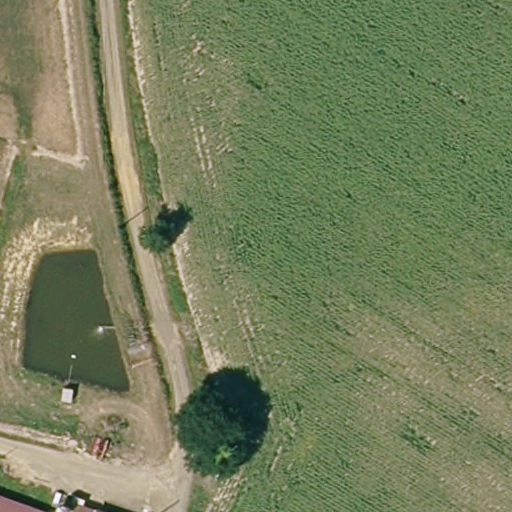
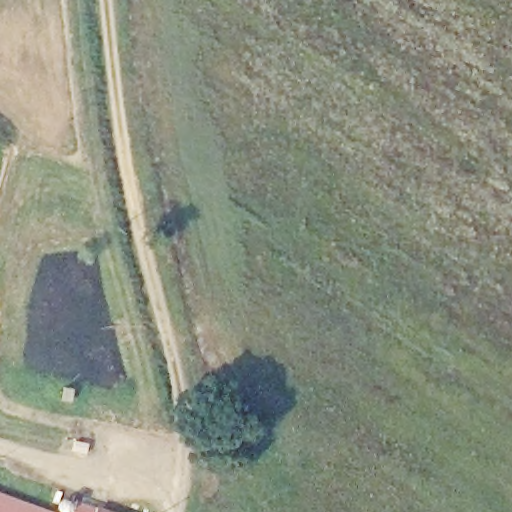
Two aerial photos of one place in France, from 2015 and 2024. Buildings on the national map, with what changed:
unchanged [(60,512),(0,512),(0,493),(60,512)]
unchanged [(70,500),(95,508),(94,512),(67,512),(70,500)]
unchanged [(95,508),(108,512),(94,512),(95,508)]

